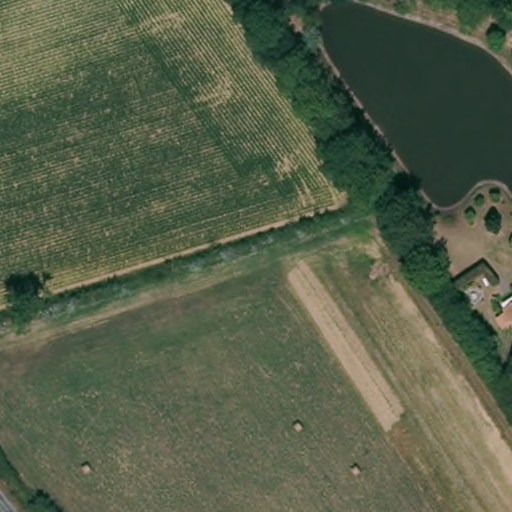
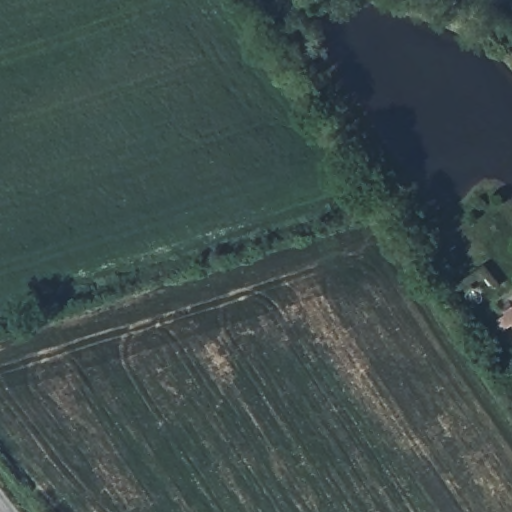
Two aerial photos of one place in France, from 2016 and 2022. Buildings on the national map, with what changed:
unchanged [(500,329),(494,321),(512,304),(512,336),(505,327),(500,329)]

